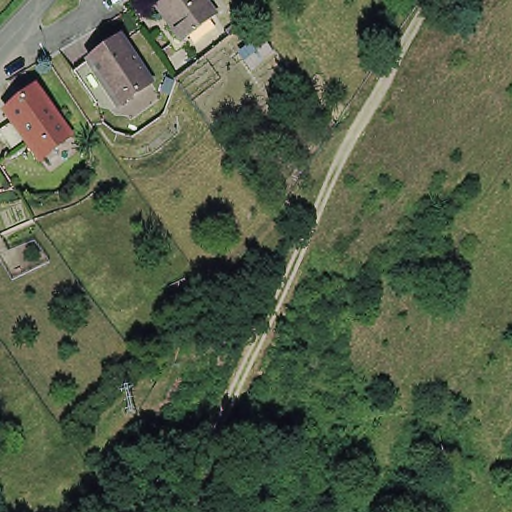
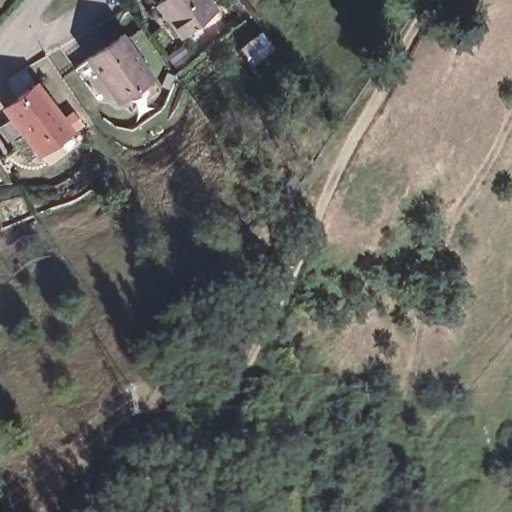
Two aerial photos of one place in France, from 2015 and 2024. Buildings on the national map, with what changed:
unchanged [(160,0),(213,0),(217,5),(183,30),(160,0)]
unchanged [(88,55),(120,32),(150,75),(118,98),(88,55)]
unchanged [(1,125),(17,115),(9,105),(40,83),(73,129),(42,150),(29,132),(14,143),(1,125)]

